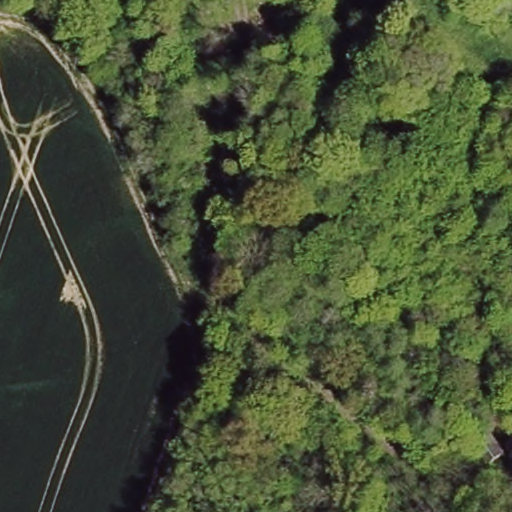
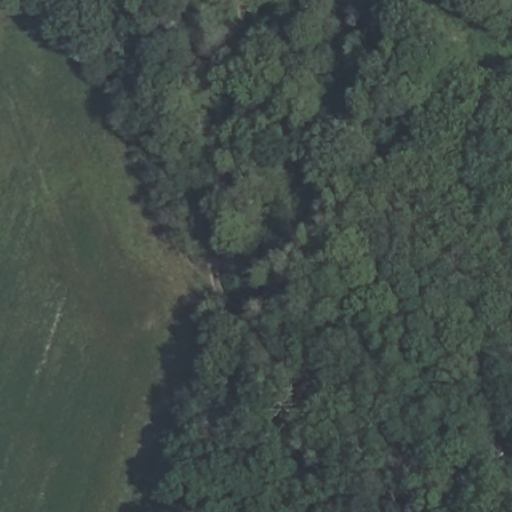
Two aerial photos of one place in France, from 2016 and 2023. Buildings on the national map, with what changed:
unchanged [(509,397),(512,402),(512,449),(507,452),(484,415),(509,397)]

